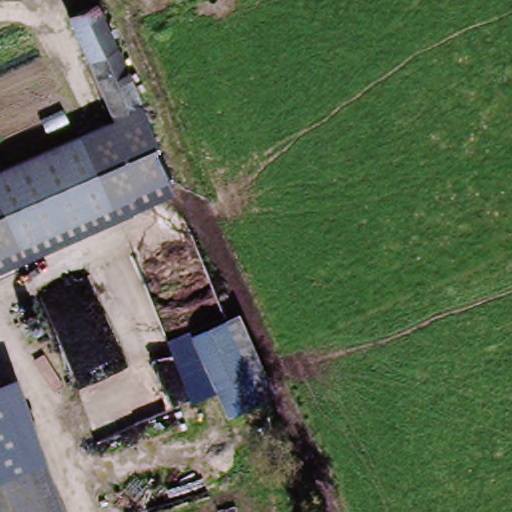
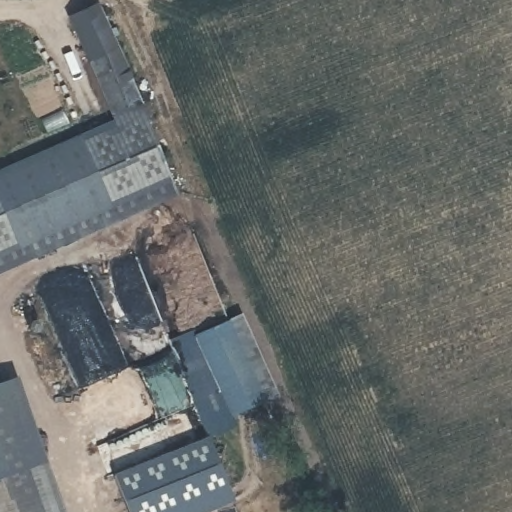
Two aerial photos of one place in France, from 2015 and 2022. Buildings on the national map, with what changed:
unchanged [(124,69),(152,140),(124,148),(123,142),(96,72),(90,72),(74,33),(103,21),(124,69)]
unchanged [(124,148),(152,140),(177,197),(0,274),(0,171),(114,121),(124,148)]
unchanged [(268,398),(235,412),(200,333),(234,318),(268,398)]
new [(235,412),(228,415),(218,391),(193,402),(168,341),(193,330),(194,336),(200,333),(235,412)]
unchanged [(61,512),(0,512),(0,392),(20,386),(61,512)]
new [(129,512),(114,474),(208,435),(234,501),(206,512),(129,512)]

